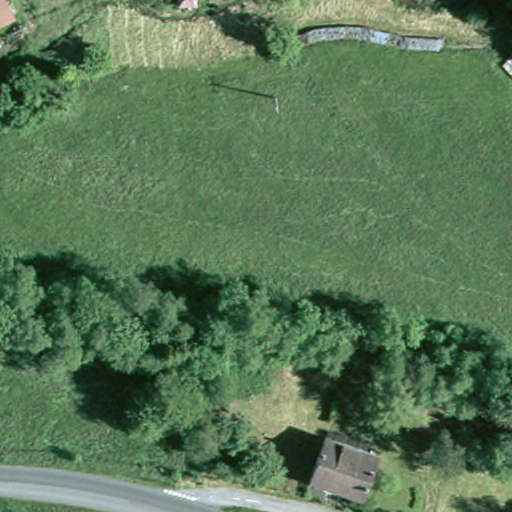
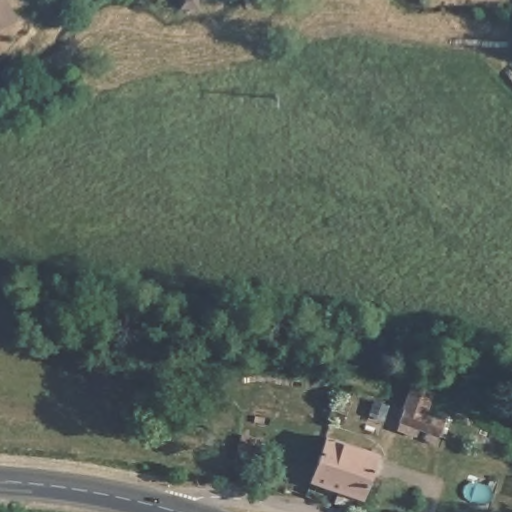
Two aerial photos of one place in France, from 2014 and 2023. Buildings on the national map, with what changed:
unchanged [(37,0),(30,3),(0,18),(0,0),(37,0)]
unchanged [(422,452),(382,438),(387,423),(409,431),(427,438),(422,452)]
unchanged [(363,495),(315,477),(329,434),(377,453),(363,495)]

